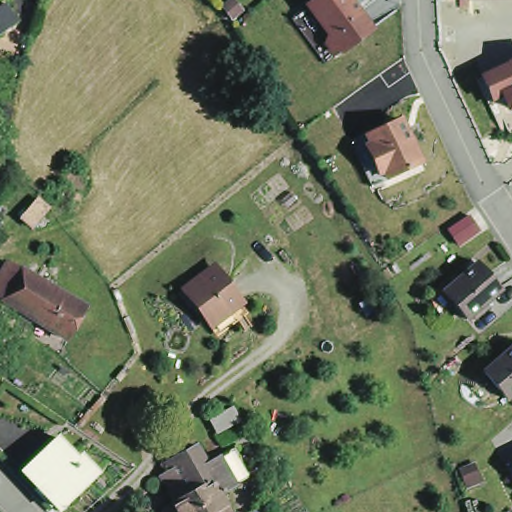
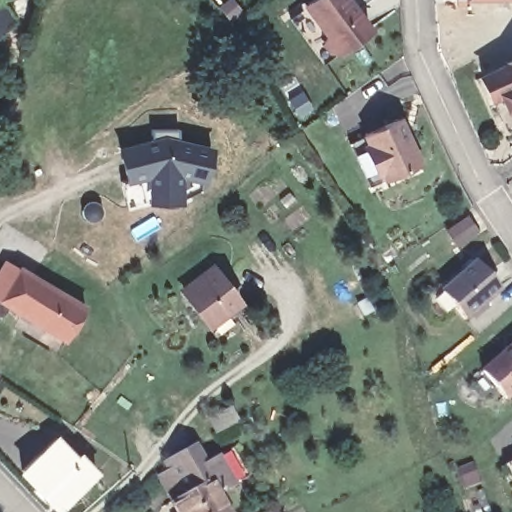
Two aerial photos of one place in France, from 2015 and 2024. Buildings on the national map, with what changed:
unchanged [(318,40),(323,33),(302,0),(303,0),(348,0),(370,30),(332,55),(318,40)]
unchanged [(15,21),(0,34),(0,7),(5,4),(15,21)]
unchanged [(478,73),(506,63),(504,52),(512,49),(512,102),(505,105),(500,93),(488,97),(478,73)]
unchanged [(359,131),(400,111),(421,159),(378,176),(359,131)]
new [(151,143),(150,130),(176,130),(176,142),(210,150),(202,180),(178,175),(175,188),(175,203),(153,203),(153,188),(150,175),(127,180),(120,150),(151,143)]
demolished [(30,229),(25,224),(18,219),(35,197),(39,201),(47,208),(30,229)]
new [(480,235),(456,250),(445,233),(467,218),(480,235)]
unchanged [(460,312),(440,283),(477,257),(497,286),(460,312)]
unchanged [(13,282),(20,272),(50,289),(30,322),(18,315),(9,309),(2,321),(0,320),(0,274),(5,277),(13,282)]
unchanged [(180,300),(207,276),(230,303),(201,326),(180,300)]
unchanged [(43,329),(30,322),(50,289),(85,311),(70,337),(66,343),(43,329)]
unchanged [(512,343),(512,388),(503,396),(480,369),(512,343)]
unchanged [(235,420),(215,432),(207,420),(227,408),(235,420)]
unchanged [(55,443),(76,465),(80,461),(96,477),(60,512),(57,512),(21,475),(55,443)]
unchanged [(170,502),(172,501),(158,476),(167,471),(162,464),(194,446),(204,463),(215,456),(224,471),(232,484),(220,491),(215,494),(225,512),(176,512),(170,502)]
unchanged [(512,464),(512,470),(510,465),(512,464)]
unchanged [(267,510),(269,512),(266,512),(267,510)]

